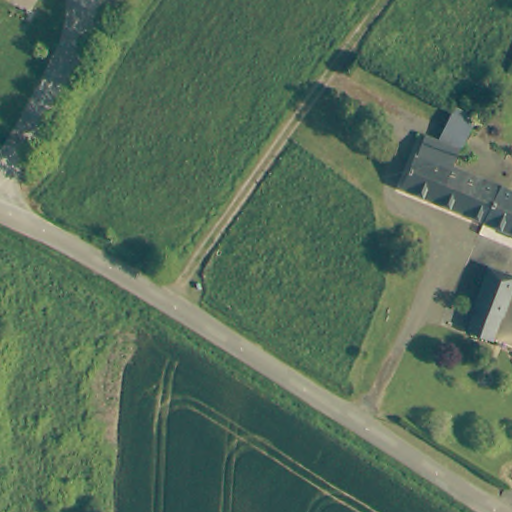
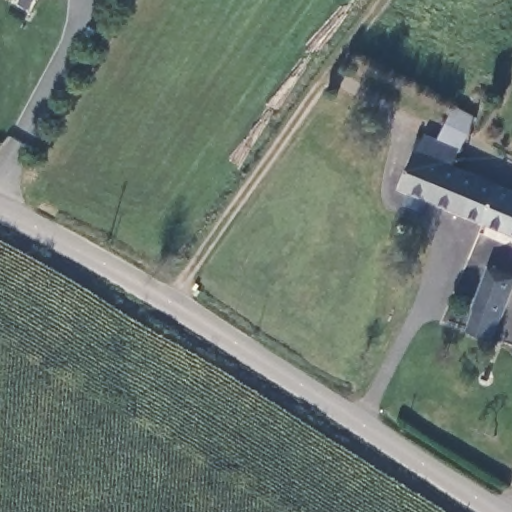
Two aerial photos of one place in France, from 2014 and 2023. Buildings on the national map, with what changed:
unchanged [(479,216),(459,206),(437,195),(415,185),(400,177),(419,142),(426,130),(439,137),(444,126),(455,105),(472,113),(447,170),(469,180),(489,190),(512,200),(512,231),(479,216)]
unchanged [(466,325),(476,302),(488,274),(511,283),(512,283),(512,292),(503,313),(494,336),(466,325)]

